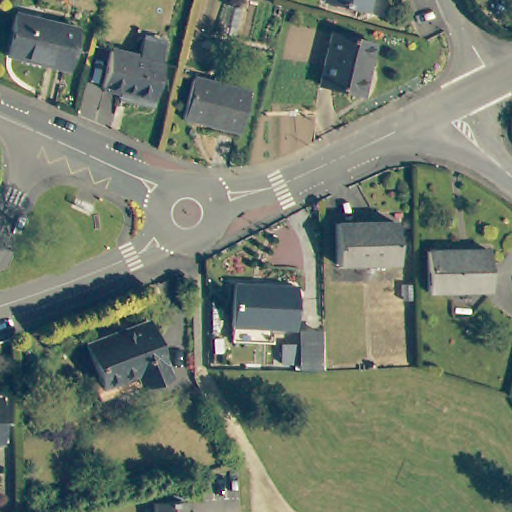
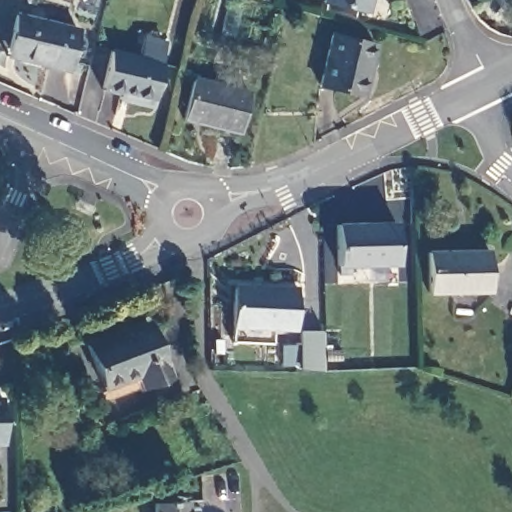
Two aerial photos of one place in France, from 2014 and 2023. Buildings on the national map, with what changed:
unchanged [(366,12),(323,2),(323,0),(370,0),(366,12)]
unchanged [(505,5),(496,0),(507,0),(505,5)]
unchanged [(227,5),(242,9),(235,36),(221,32),(227,5)]
unchanged [(68,71),(6,56),(17,13),(79,29),(68,71)]
unchanged [(371,62),(368,61),(360,95),(319,85),(331,35),(375,46),(371,62)]
unchanged [(165,42),(161,62),(163,62),(154,102),(150,101),(149,106),(120,99),(121,94),(103,90),(113,50),(141,57),(146,38),(165,42)]
unchanged [(194,78),(250,92),(240,132),(184,119),(194,78)]
unchanged [(397,264),(337,265),(337,224),(397,224),(397,264)]
unchanged [(490,251),(490,291),(430,292),(430,251),(490,251)]
unchanged [(289,324),(268,323),(267,338),(228,336),(230,279),(291,282),(289,324)]
unchanged [(170,376),(97,402),(90,382),(99,378),(86,343),(150,321),(170,376)]
unchanged [(297,363),(297,326),(317,326),(317,363),(297,363)]
unchanged [(0,443),(0,398),(1,398),(1,443),(0,443)]
unchanged [(182,501),(183,512),(149,512),(149,502),(182,501)]

